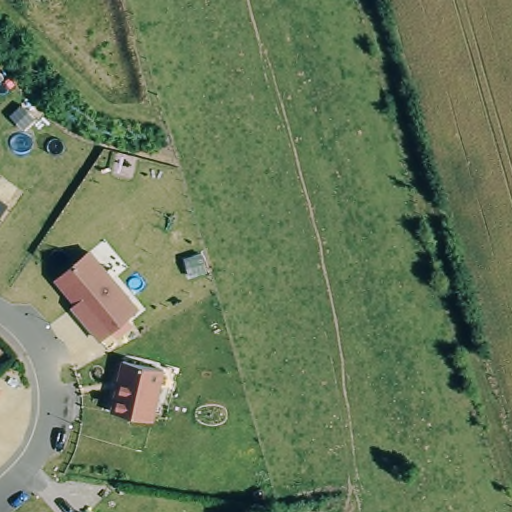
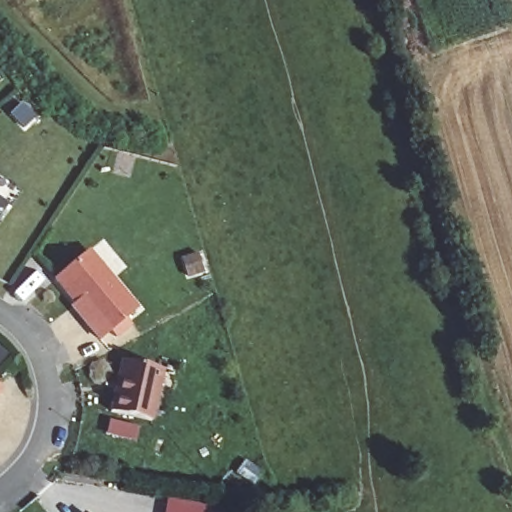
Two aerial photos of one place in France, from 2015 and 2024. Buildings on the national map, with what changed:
unchanged [(8,204),(0,215),(0,198),(8,204)]
unchanged [(89,253),(137,309),(101,340),(87,324),(91,321),(57,280),(89,253)]
unchanged [(164,371),(153,422),(112,413),(123,363),(164,371)]
unchanged [(1,389),(0,390),(0,388),(1,389)]
new [(167,497),(219,509),(218,512),(164,512),(167,497)]

